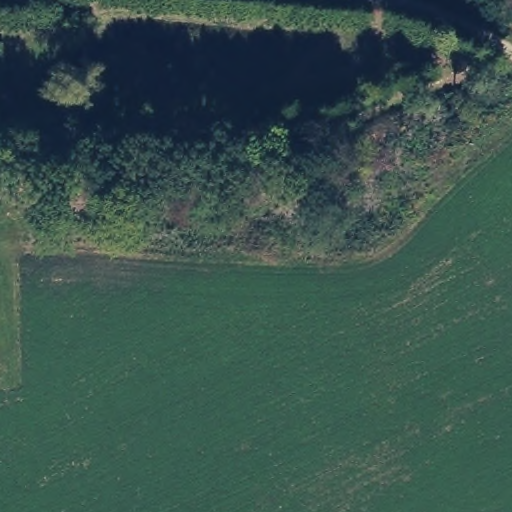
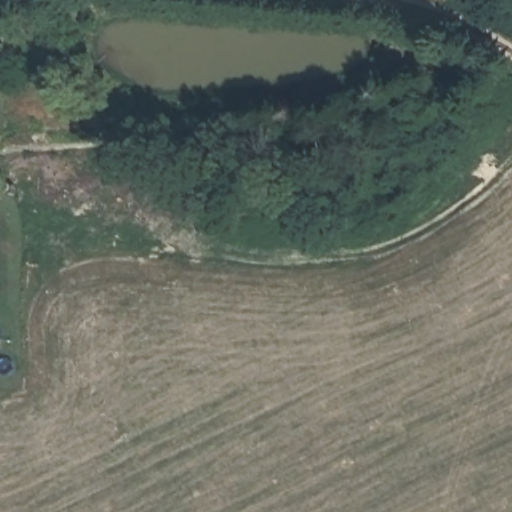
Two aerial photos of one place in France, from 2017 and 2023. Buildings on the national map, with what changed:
[]

